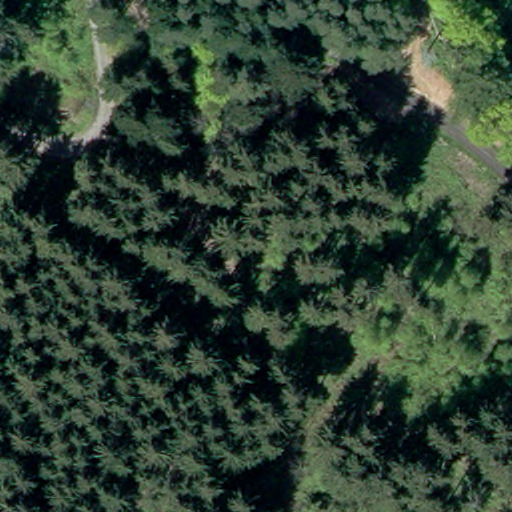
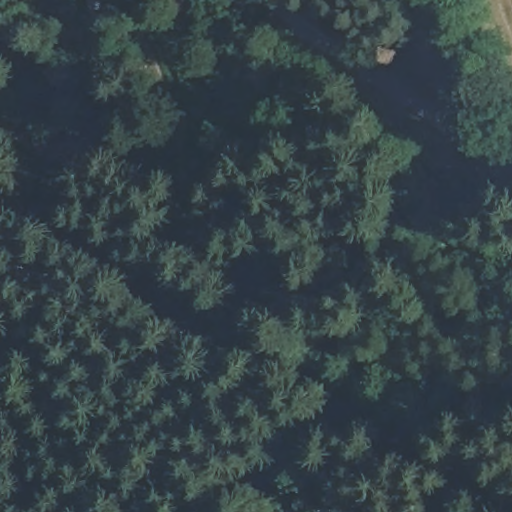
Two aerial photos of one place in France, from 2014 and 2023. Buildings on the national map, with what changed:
unchanged [(279,512),(259,512),(258,497),(278,496),(279,512)]

